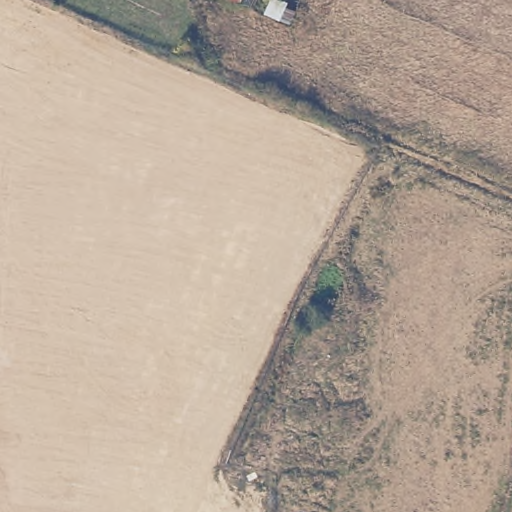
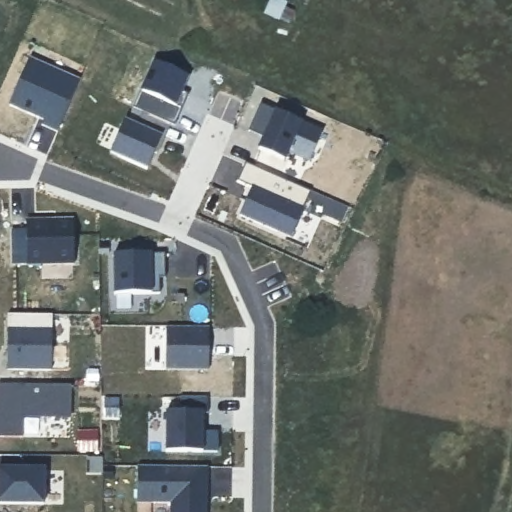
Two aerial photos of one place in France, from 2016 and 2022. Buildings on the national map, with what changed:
new [(33,58),(84,79),(63,130),(49,124),(51,117),(14,101),(33,58)]
new [(268,131),(250,123),(260,102),(324,133),(310,162),(287,150),(283,158),(289,161),(282,176),(253,164),(268,131)]
new [(126,119),(136,123),(144,111),(170,122),(163,136),(150,168),(114,153),(126,119)]
new [(255,187),(240,181),(248,162),(253,164),(282,176),(314,190),(294,236),(243,214),(255,187)]
new [(28,218),(76,216),(78,262),(29,263),(28,218)]
new [(115,254),(153,252),(166,252),(168,277),(162,278),(163,291),(117,293),(115,254)]
new [(9,312),(55,313),(54,368),(10,368),(9,312)]
new [(214,324),(214,368),(166,368),(167,323),(214,324)]
new [(74,417),(26,416),(25,436),(0,436),(0,384),(74,384),(74,417)]
new [(166,411),(183,411),(182,395),(210,395),(212,413),(204,413),(205,427),(221,429),(221,451),(205,450),(168,450),(166,411)]
new [(208,512),(172,512),(173,501),(136,501),(136,465),(209,466),(208,512)]
new [(46,504),(0,504),(0,468),(46,467),(46,504)]

